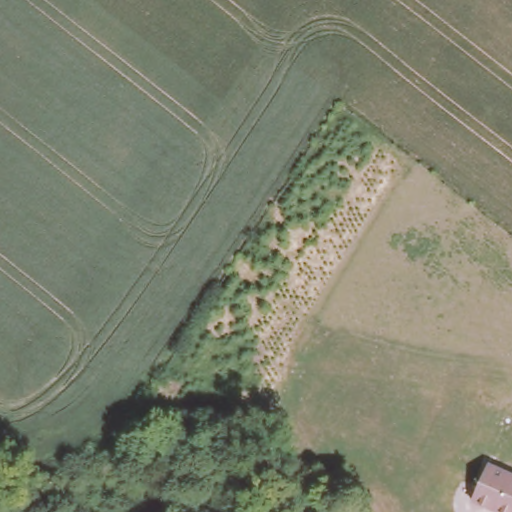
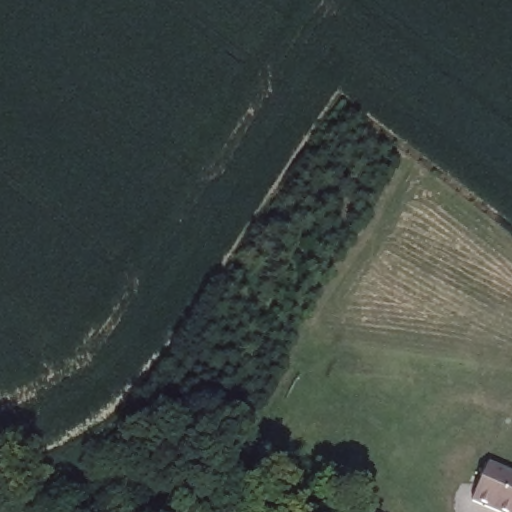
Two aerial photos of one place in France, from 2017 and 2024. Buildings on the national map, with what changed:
unchanged [(489,461),(512,471),(512,512),(496,512),(472,501),(489,461)]

